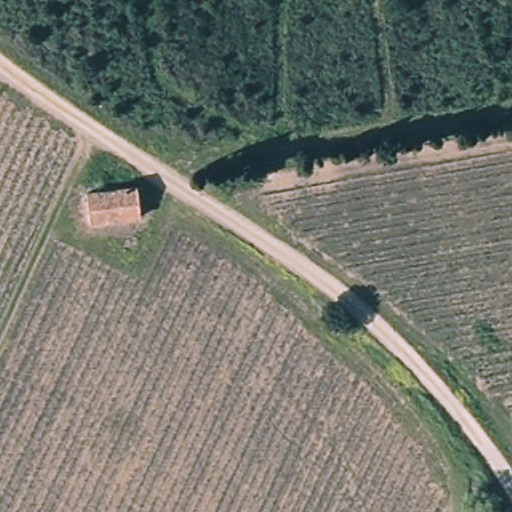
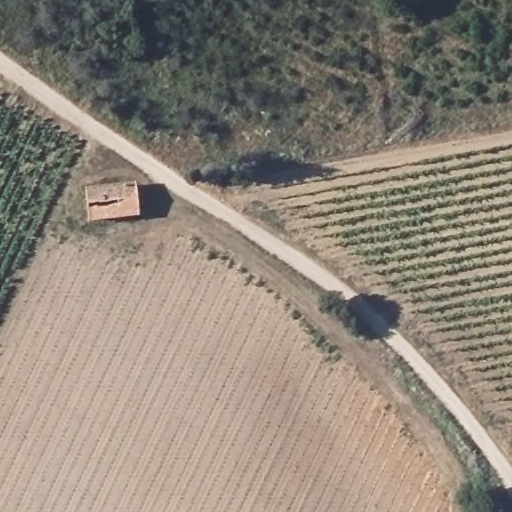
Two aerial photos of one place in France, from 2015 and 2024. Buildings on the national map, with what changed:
unchanged [(90,217),(87,191),(136,184),(140,210),(90,217)]

